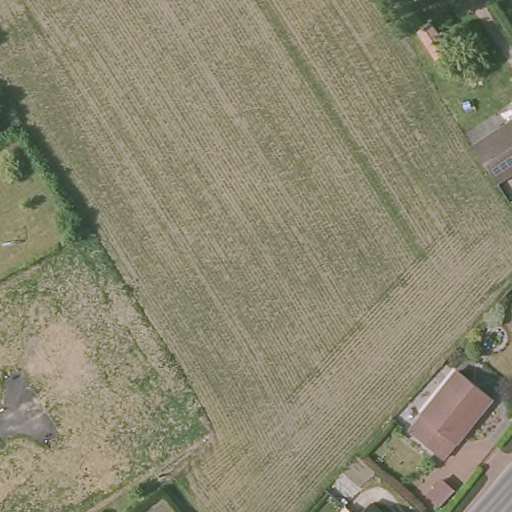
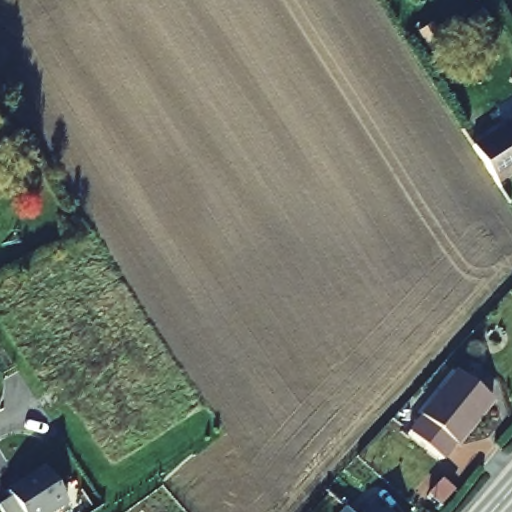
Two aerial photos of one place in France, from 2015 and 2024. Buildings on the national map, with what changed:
unchanged [(482,154),(512,135),(512,190),(506,194),(482,154)]
unchanged [(453,370),(487,399),(435,458),(400,431),(453,370)]
new [(9,486),(47,462),(68,495),(42,512),(8,512),(0,500),(12,492),(9,486)]
unchanged [(466,473),(451,488),(438,478),(451,462),(466,473)]

